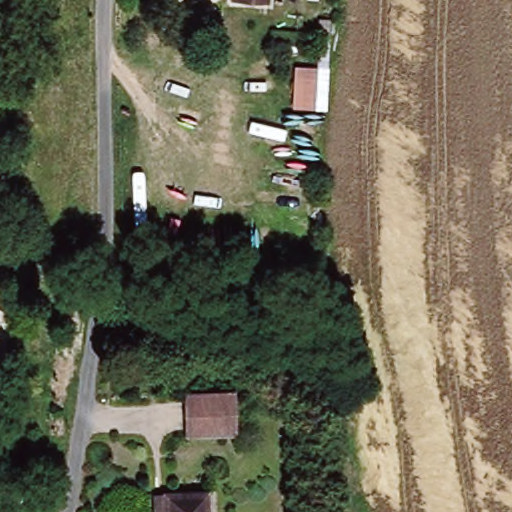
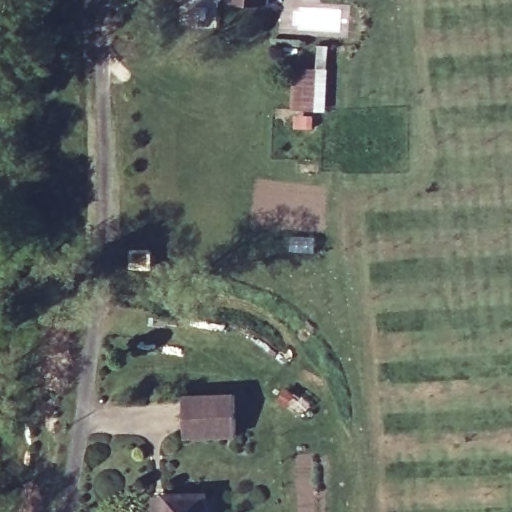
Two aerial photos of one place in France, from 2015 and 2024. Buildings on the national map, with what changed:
unchanged [(271,9),(232,8),(233,0),(272,0),(271,9)]
unchanged [(327,67),(325,109),(290,107),(292,65),(327,67)]
unchanged [(183,400),(232,396),(233,407),(235,435),(185,438),(184,410),(183,400)]
unchanged [(200,496),(201,512),(158,512),(157,498),(200,496)]

